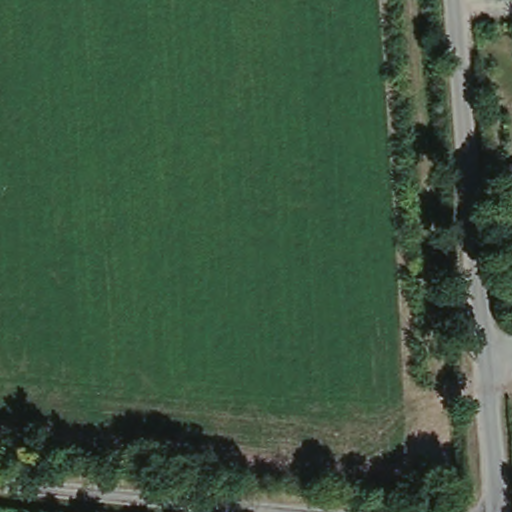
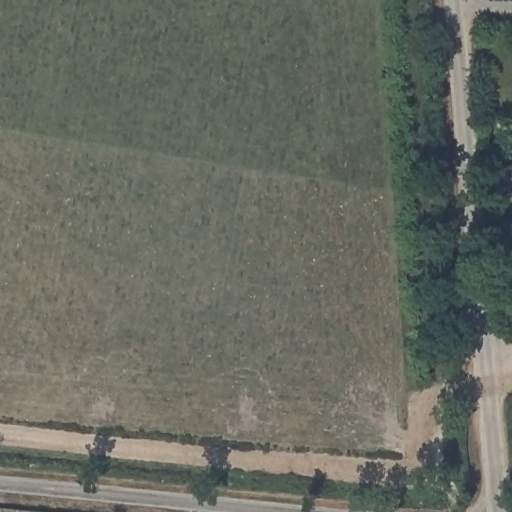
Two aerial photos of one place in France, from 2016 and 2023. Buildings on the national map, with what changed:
unchanged [(512,165),(512,190),(512,191),(510,165),(512,165)]

